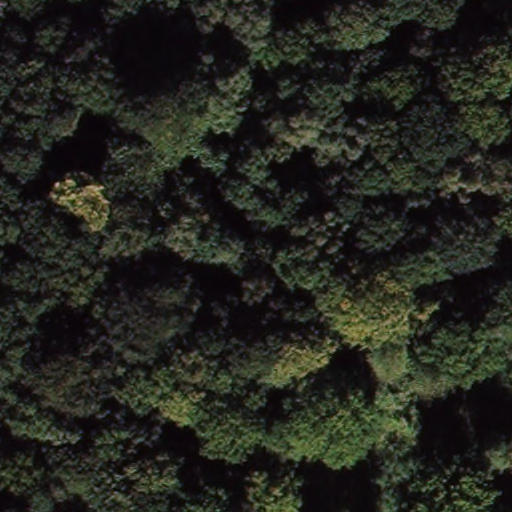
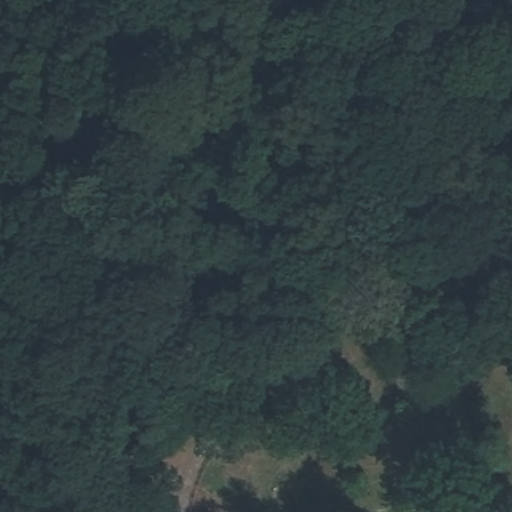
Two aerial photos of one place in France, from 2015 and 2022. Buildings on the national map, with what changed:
[]

